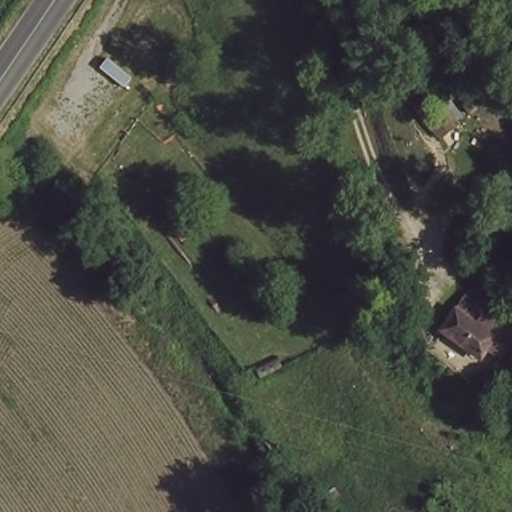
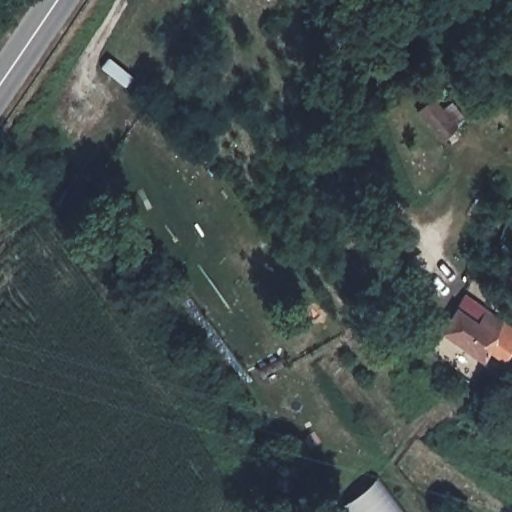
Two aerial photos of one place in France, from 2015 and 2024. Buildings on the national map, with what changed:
unchanged [(435,147),(413,125),(409,121),(422,105),(427,110),(449,133),(435,147)]
unchanged [(482,357),(443,335),(468,300),(512,330),(512,356),(508,361),(488,348),(482,357)]
new [(375,478),(400,512),(342,512),(337,505),(375,478)]

